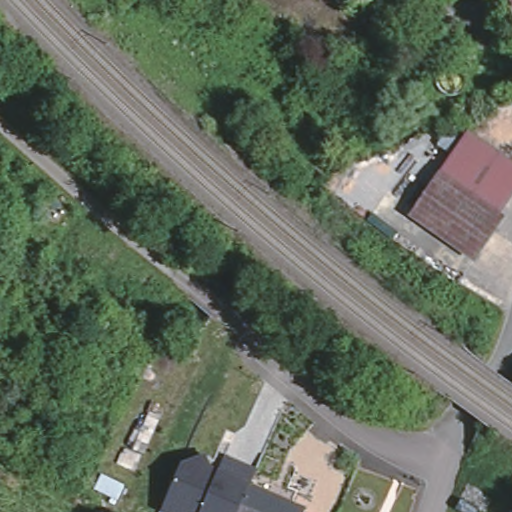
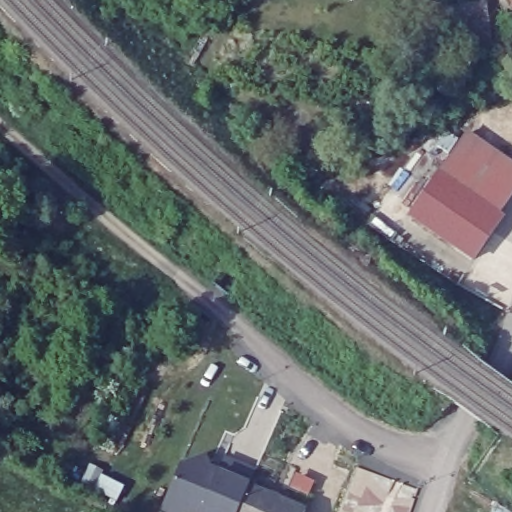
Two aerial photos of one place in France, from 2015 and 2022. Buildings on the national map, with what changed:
unchanged [(512,3),(510,0),(512,0),(512,3)]
unchanged [(484,1),(491,46),(458,50),(452,23),(438,25),(436,6),(484,1)]
unchanged [(512,163),(512,194),(498,214),(440,174),(468,133),(512,163)]
unchanged [(502,217),(474,258),(412,215),(440,174),(498,214),(502,217)]
unchanged [(164,512),(163,511),(182,467),(205,456),(210,470),(208,474),(216,477),(217,473),(249,487),(239,512),(164,512)]
unchanged [(306,512),(239,512),(249,487),(306,511),(306,512)]

